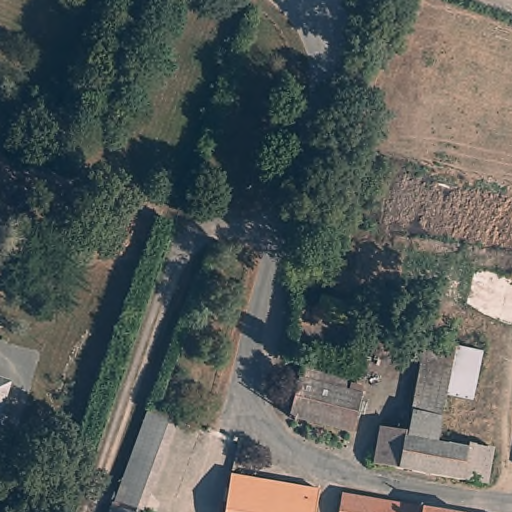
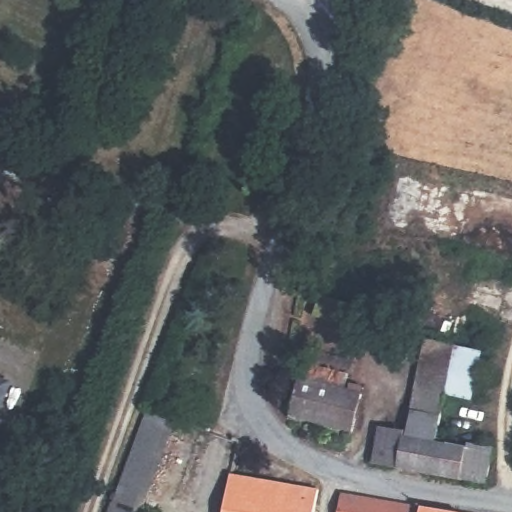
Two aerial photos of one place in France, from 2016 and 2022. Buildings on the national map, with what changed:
unchanged [(366,306),(359,328),(313,309),(320,288),(366,306)]
unchanged [(425,338),(456,346),(435,443),(403,438),(425,338)]
unchanged [(361,384),(355,423),(293,412),(299,373),(361,384)]
unchanged [(0,415),(0,383),(9,386),(0,415)]
unchanged [(117,503),(155,411),(181,423),(144,512),(117,503)]
unchanged [(430,473),(378,465),(383,435),(403,438),(435,443),(430,473)]
unchanged [(477,450),(478,447),(498,451),(493,476),(491,484),(430,473),(435,443),(477,450)]
unchanged [(313,512),(226,512),(234,480),(316,492),(313,512)]
unchanged [(416,504),(415,512),(329,512),(331,491),(416,504)]
unchanged [(144,512),(114,512),(117,503),(144,512)]
unchanged [(415,512),(416,504),(471,512),(415,512)]

